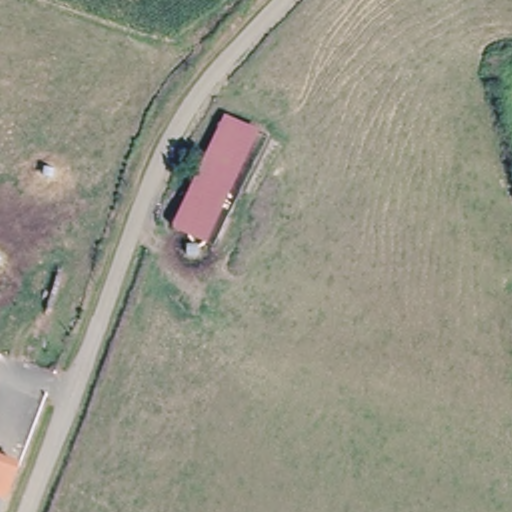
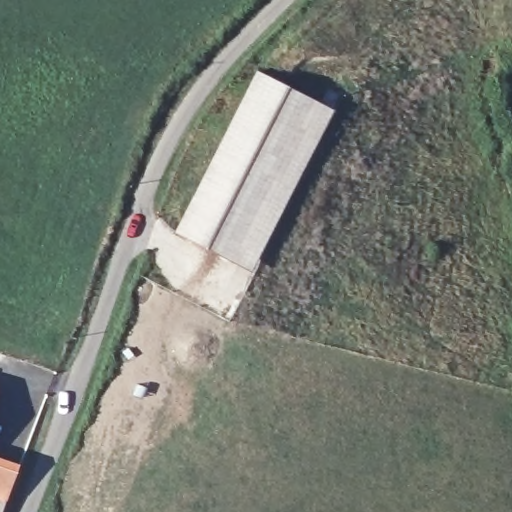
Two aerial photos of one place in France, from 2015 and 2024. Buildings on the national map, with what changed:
new [(256,70),(333,110),(251,272),(174,232),(256,70)]
demolished [(262,127),(207,239),(170,221),(227,109),(262,127)]
unchanged [(0,507),(0,464),(16,470),(11,487),(5,509),(0,507)]

